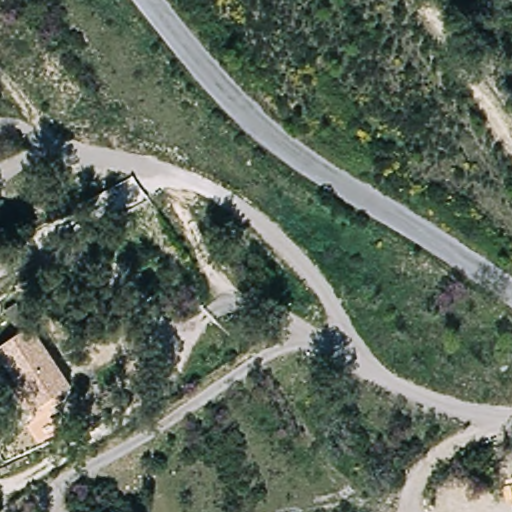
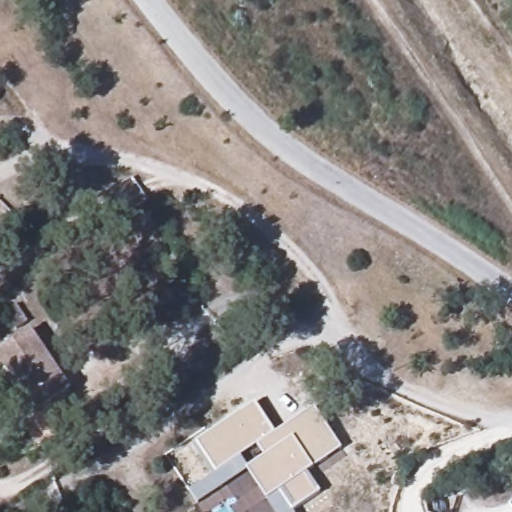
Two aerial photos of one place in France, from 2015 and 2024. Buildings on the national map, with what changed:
unchanged [(48,315),(39,323),(25,305),(35,296),(48,315)]
unchanged [(0,364),(0,352),(33,334),(70,390),(34,414),(0,364)]
new [(195,441),(255,401),(276,432),(314,407),(342,450),(309,472),(322,493),(294,511),(294,512),(274,512),(247,471),(198,503),(189,489),(215,472),(195,441)]

